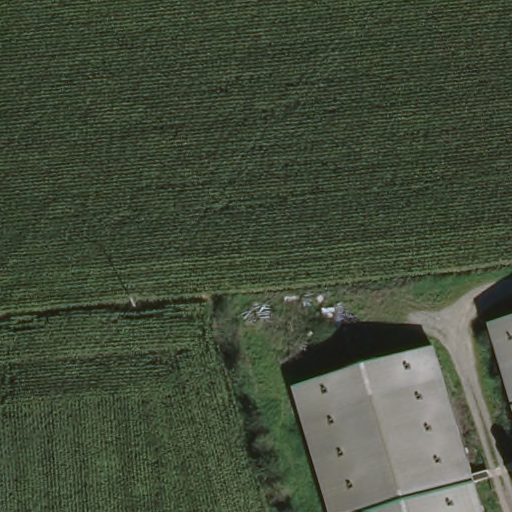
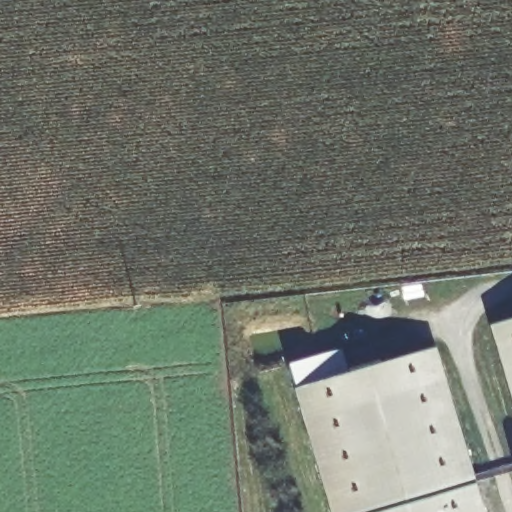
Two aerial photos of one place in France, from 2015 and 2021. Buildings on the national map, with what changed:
unchanged [(512,321),(512,399),(490,328),(512,321)]
unchanged [(301,426),(291,394),(430,351),(440,382),(470,478),(480,512),(327,512),(301,426)]

